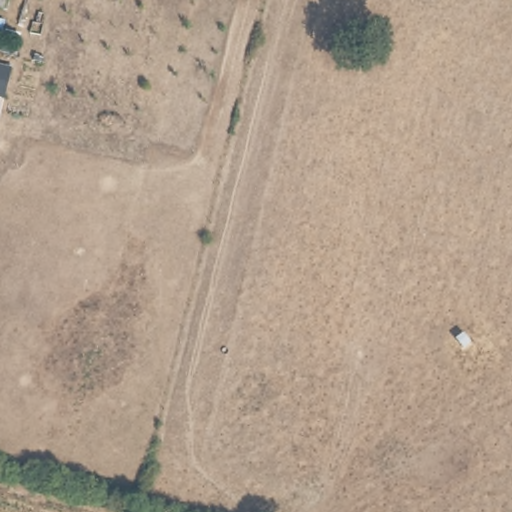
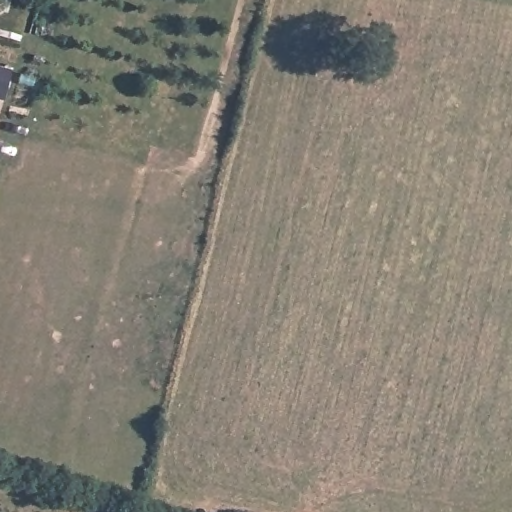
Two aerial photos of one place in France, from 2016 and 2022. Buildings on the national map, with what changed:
[]

